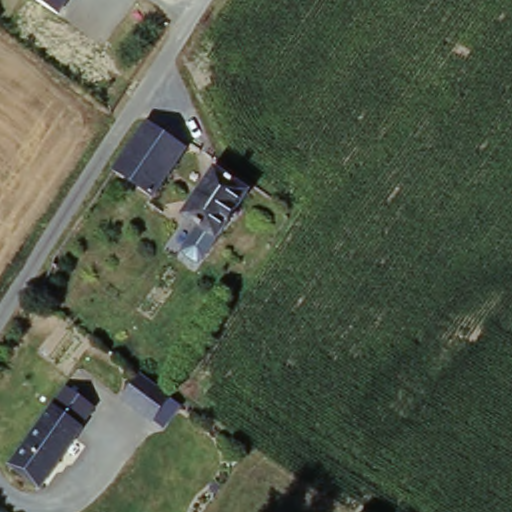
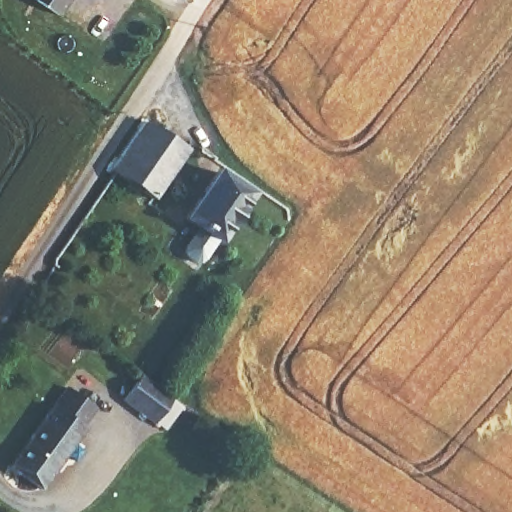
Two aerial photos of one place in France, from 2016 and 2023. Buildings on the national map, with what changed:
unchanged [(58,14),(38,0),(67,0),(58,14)]
unchanged [(147,126),(186,153),(156,203),(114,176),(147,126)]
unchanged [(222,177),(254,198),(222,244),(191,222),(222,177)]
unchanged [(143,374),(173,397),(155,420),(125,397),(143,374)]
unchanged [(45,423),(73,384),(98,402),(82,424),(86,428),(43,488),(15,466),(45,423)]

